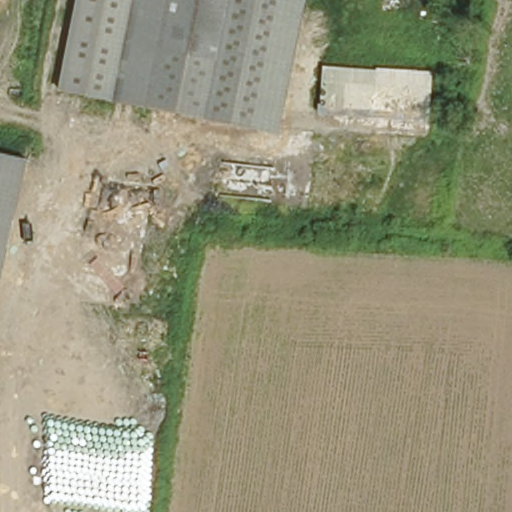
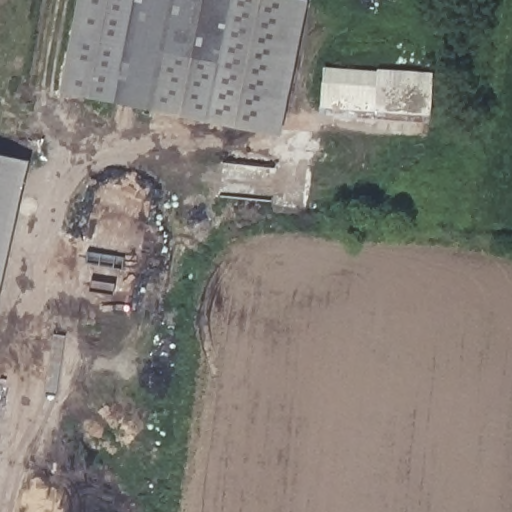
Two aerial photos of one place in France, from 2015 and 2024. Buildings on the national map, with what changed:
unchanged [(278,134),(112,101),(56,90),(74,0),(306,0),(278,134)]
unchanged [(374,69),(375,67),(431,70),(428,123),(315,113),(320,66),(374,69)]
unchanged [(26,157),(0,274),(0,152),(26,157)]

